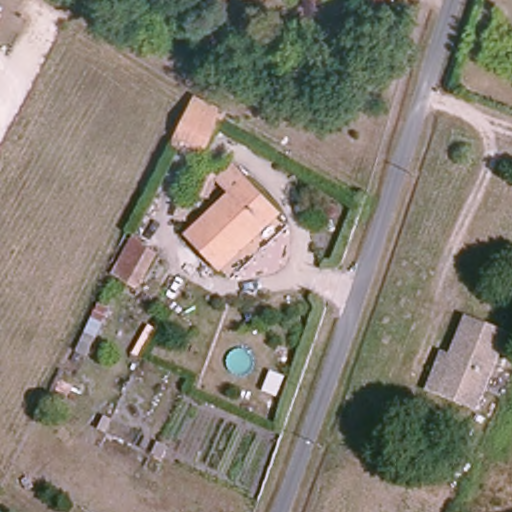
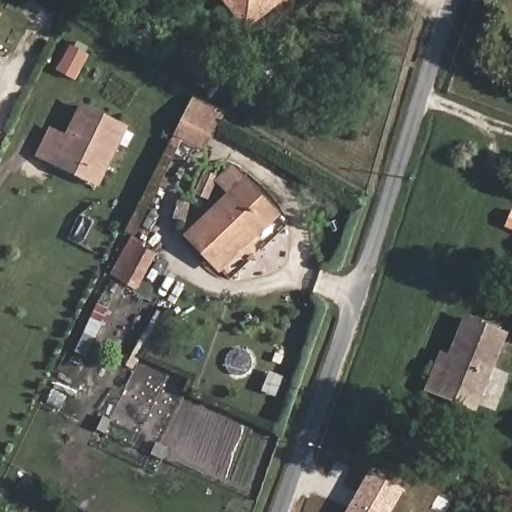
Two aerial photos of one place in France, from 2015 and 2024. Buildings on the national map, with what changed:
new [(247,30),(222,0),(285,0),(247,30)]
unchanged [(3,12),(0,18),(0,11),(3,12)]
unchanged [(220,130),(215,127),(205,152),(178,138),(200,94),(227,111),(220,130)]
new [(36,156),(50,127),(66,133),(80,103),(128,126),(99,187),(36,156)]
unchanged [(252,180),(283,219),(220,269),(188,232),(252,180)]
unchanged [(114,276),(135,237),(158,256),(140,290),(114,276)]
unchanged [(77,353),(101,299),(110,307),(86,357),(77,353)]
unchanged [(436,352),(450,357),(465,320),(504,334),(472,409),(438,396),(421,389),(436,352)]
new [(405,491),(392,512),(345,512),(369,470),(405,491)]

